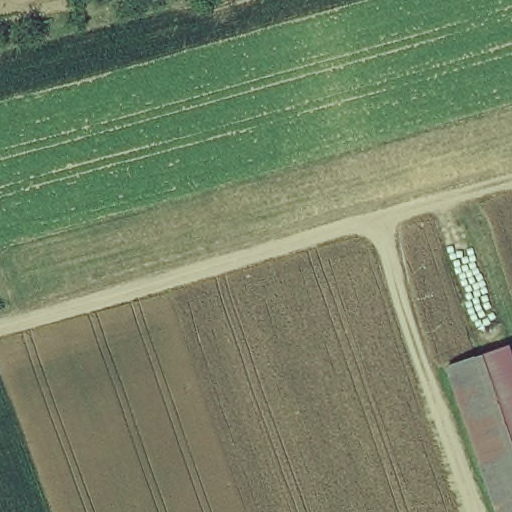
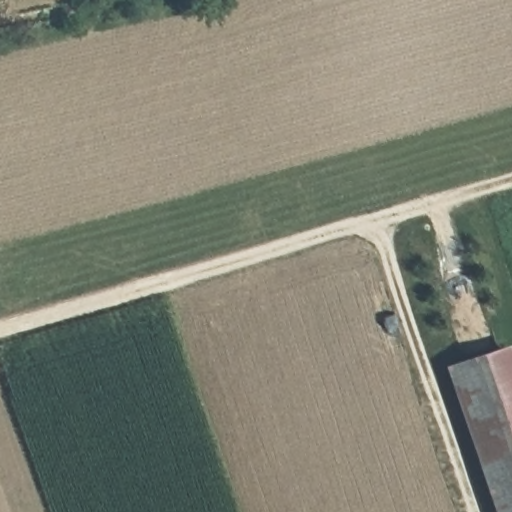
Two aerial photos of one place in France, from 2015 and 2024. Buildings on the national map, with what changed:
unchanged [(497,512),(448,367),(503,350),(512,378),(512,512),(497,512)]

